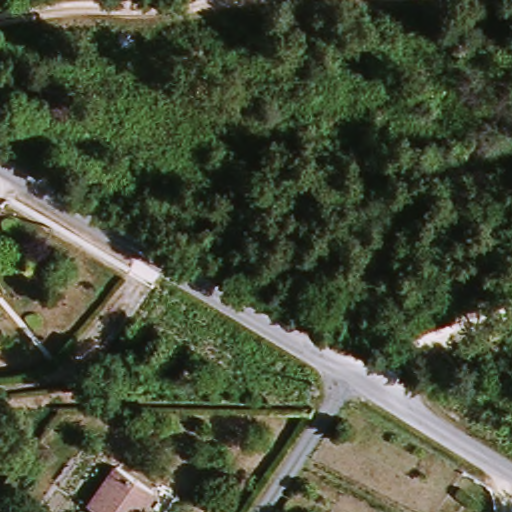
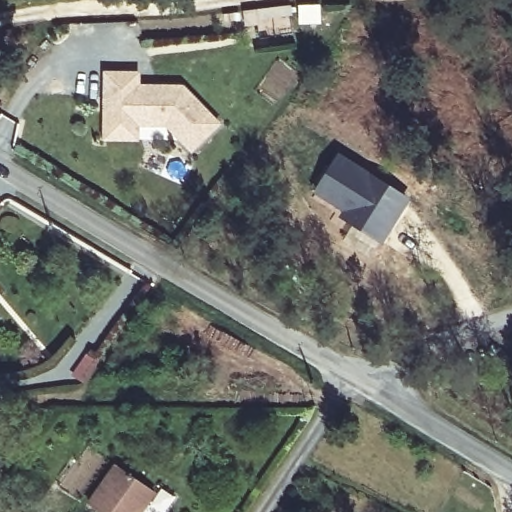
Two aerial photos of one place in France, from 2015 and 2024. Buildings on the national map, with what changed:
new [(107,75),(139,76),(139,89),(184,90),(220,127),(192,153),(167,128),(137,127),(137,142),(105,141),(105,126),(107,75)]
unchanged [(42,88),(73,97),(66,123),(35,114),(42,88)]
new [(339,150),(410,198),(382,244),(338,215),(340,211),(312,192),(339,150)]
unchanged [(141,512),(104,512),(92,504),(120,466),(156,492),(141,512)]

